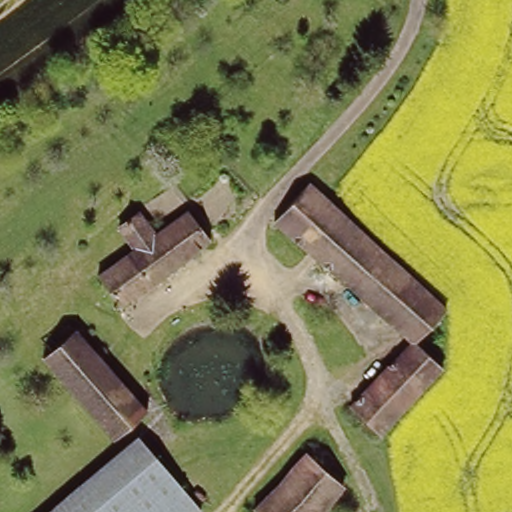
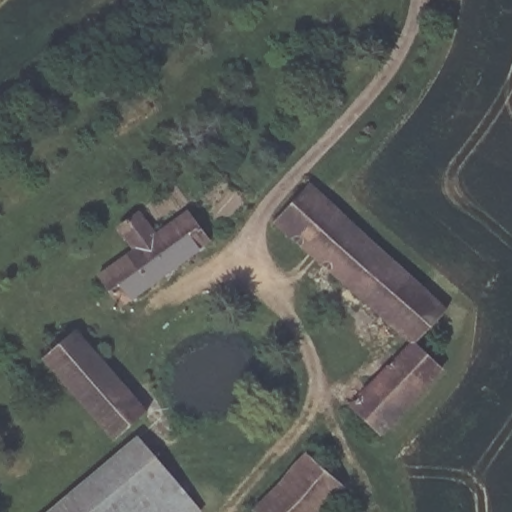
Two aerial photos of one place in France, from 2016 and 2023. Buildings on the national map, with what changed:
unchanged [(403,324),(399,328),(279,220),(314,181),(451,310),(422,342),(403,324)]
unchanged [(95,281),(138,249),(123,226),(141,213),(148,223),(158,216),(168,230),(193,211),(215,241),(127,306),(123,300),(114,306),(95,281)]
unchanged [(50,354),(80,328),(152,409),(121,436),(50,354)]
unchanged [(358,406),(420,341),(448,367),(386,434),(358,406)]
unchanged [(145,433),(207,508),(201,512),(48,512),(145,433)]
unchanged [(257,511),(307,455),(345,489),(324,512),(259,512),(257,511)]

